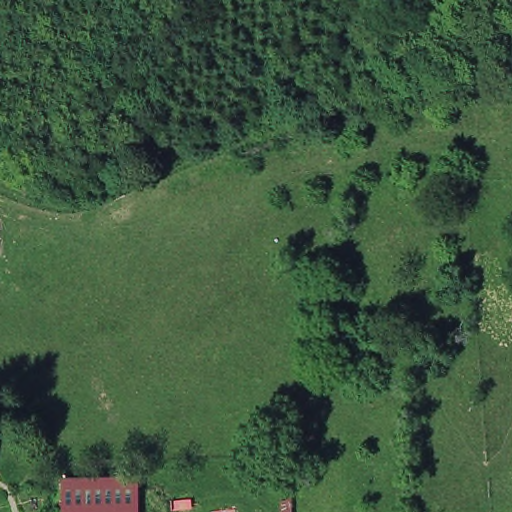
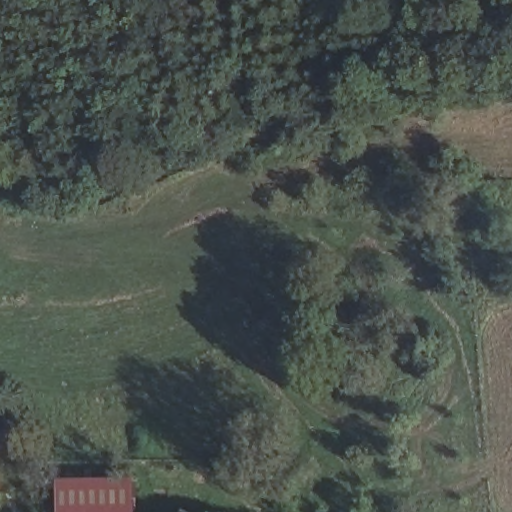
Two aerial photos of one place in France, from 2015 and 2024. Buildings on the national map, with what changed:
unchanged [(137,477),(139,512),(61,512),(60,480),(137,477)]

